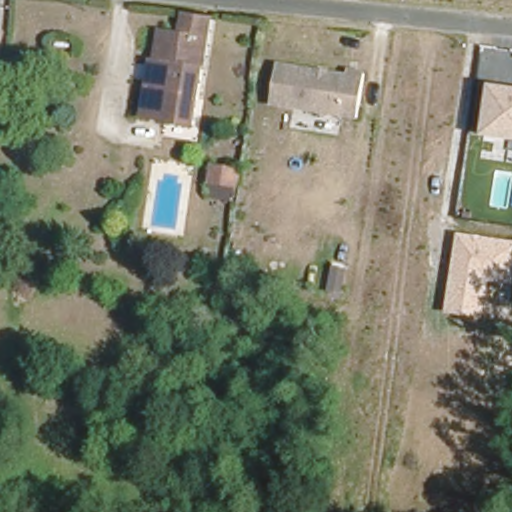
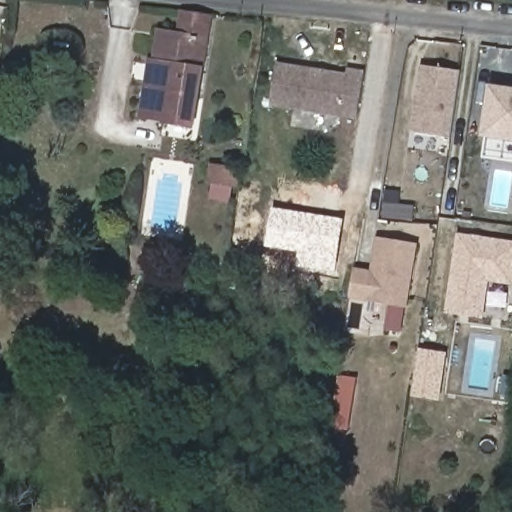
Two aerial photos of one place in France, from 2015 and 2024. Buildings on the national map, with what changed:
unchanged [(151,59),(154,60),(159,29),(177,32),(180,11),(209,16),(196,99),(145,91),(151,59)]
unchanged [(275,61),(344,72),(346,67),(364,70),(355,119),(267,106),(275,61)]
new [(410,133),(419,66),(459,71),(450,138),(410,133)]
unchanged [(483,136),(489,85),(512,88),(512,141),(483,136)]
unchanged [(192,125),(141,116),(145,91),(196,99),(192,125)]
unchanged [(209,161),(242,167),(237,190),(204,183),(209,161)]
new [(336,273),(298,267),(299,253),(267,247),(274,208),(344,220),(336,273)]
unchanged [(488,280),(482,316),(450,312),(461,236),(512,243),(512,282),(488,280)]
new [(409,308),(349,300),(354,268),(371,271),(376,238),(419,244),(409,308)]
new [(419,349),(448,353),(441,401),(412,397),(419,349)]

